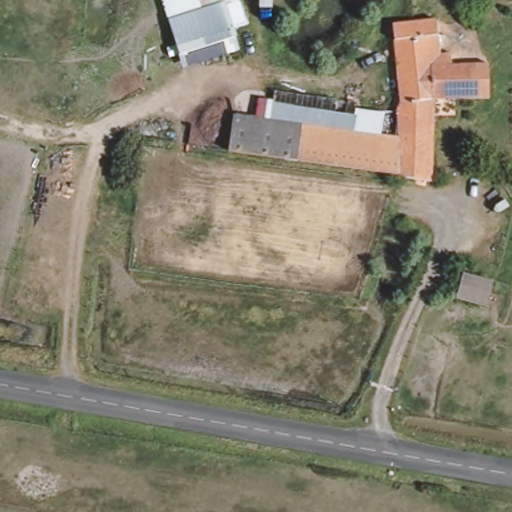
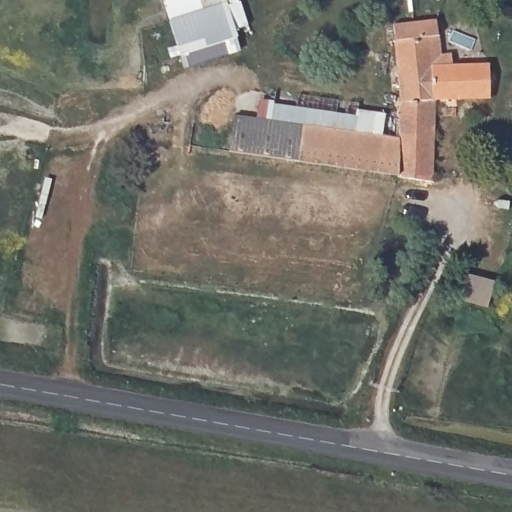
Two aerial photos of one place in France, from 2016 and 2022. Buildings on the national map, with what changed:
unchanged [(237,3),(239,2),(246,27),(233,31),(238,51),(188,66),(184,54),(179,56),(161,0),(236,0),(237,3)]
unchanged [(488,100),(433,101),(431,180),(227,153),(233,114),(253,117),(256,99),(271,101),(273,103),(356,116),(354,132),(397,138),(396,109),(399,102),(392,23),(435,19),(439,55),(451,54),(453,64),(487,63),(488,100)]
unchanged [(501,287),(490,312),(458,299),(468,274),(501,287)]

